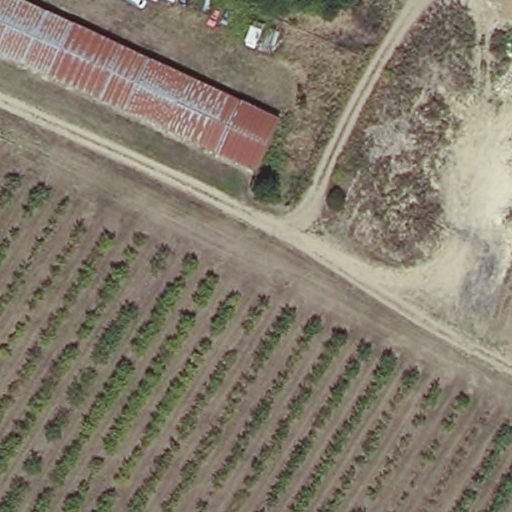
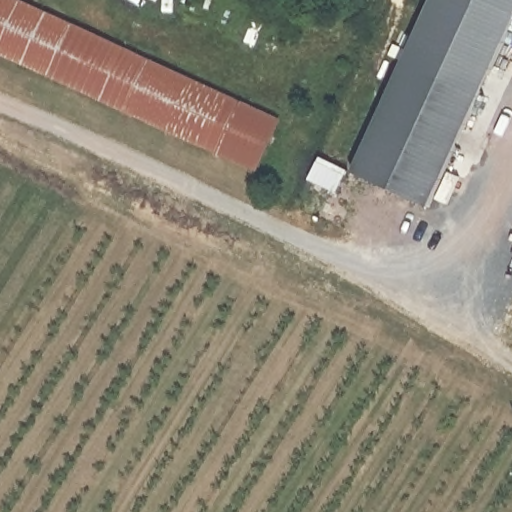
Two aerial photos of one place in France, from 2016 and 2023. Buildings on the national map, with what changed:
unchanged [(0,0),(17,0),(280,125),(257,174),(0,51),(0,0)]
new [(432,0),(512,0),(512,25),(424,206),(349,169),(432,0)]

